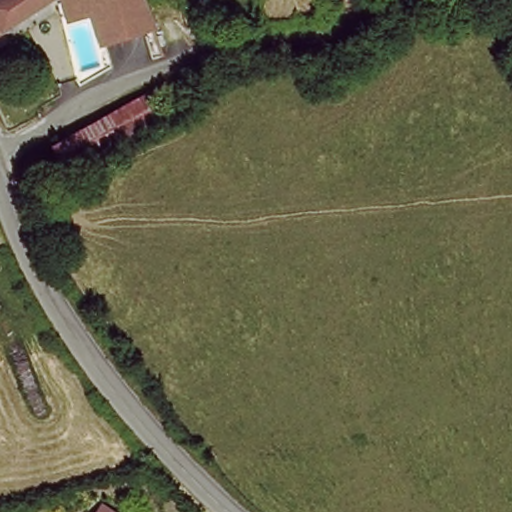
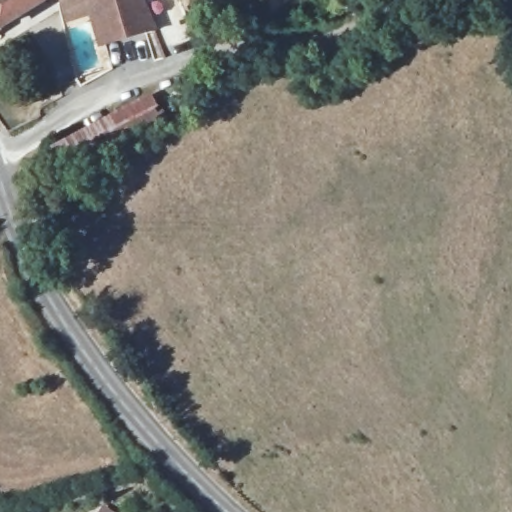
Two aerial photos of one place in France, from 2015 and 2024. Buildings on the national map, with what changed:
unchanged [(0,29),(0,12),(1,11),(0,9),(0,0),(49,0),(0,29)]
unchanged [(159,18),(168,42),(127,57),(118,35),(86,46),(71,0),(191,0),(192,5),(159,18)]
unchanged [(164,124),(64,171),(52,145),(153,97),(164,124)]
unchanged [(120,512),(107,512),(111,506),(120,512)]

